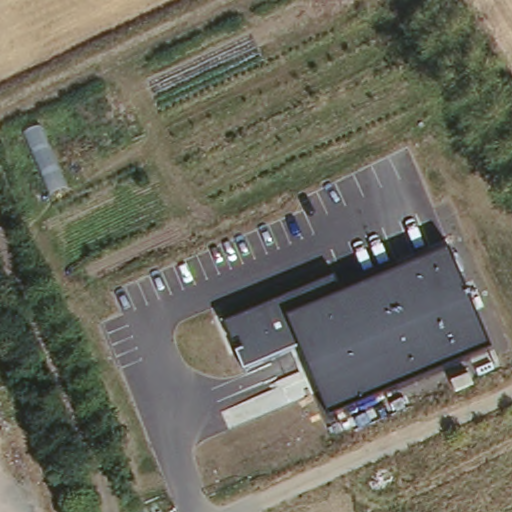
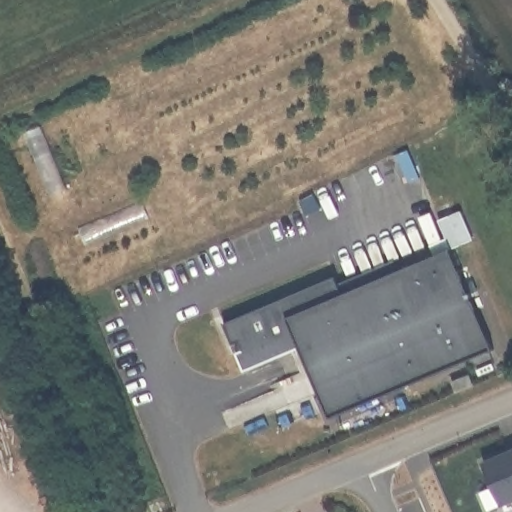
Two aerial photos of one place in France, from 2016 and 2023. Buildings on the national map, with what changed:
unchanged [(299,350),(245,371),(224,322),(337,275),(345,294),(452,250),(495,348),(328,416),(299,350)]
new [(512,453),(512,506),(502,510),(483,465),(512,453)]

